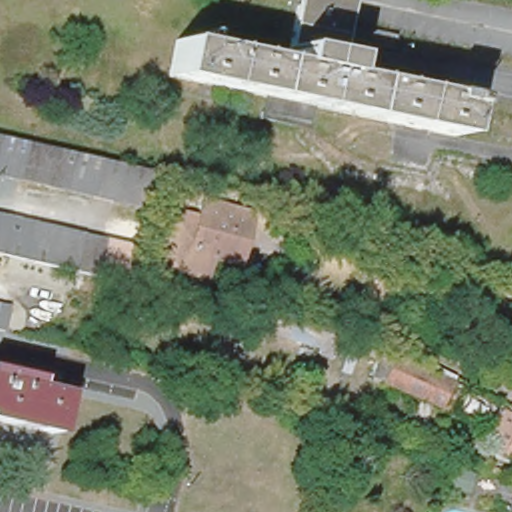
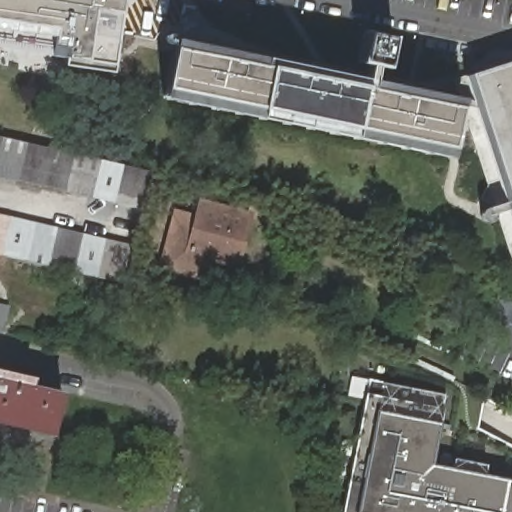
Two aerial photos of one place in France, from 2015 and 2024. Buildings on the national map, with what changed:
new [(55,55),(57,44),(0,35),(0,0),(125,0),(116,63),(55,55)]
unchanged [(337,73),(463,99),(456,136),(312,108),(263,98),(169,79),(176,41),(286,63),(337,73)]
new [(465,76),(512,62),(512,220),(465,76)]
unchanged [(95,190),(71,185),(59,182),(47,179),(22,174),(0,169),(0,133),(5,134),(155,167),(154,172),(146,201),(120,195),(95,190)]
unchanged [(119,200),(94,195),(70,189),(46,184),(21,179),(0,174),(0,169),(22,174),(47,179),(59,182),(71,185),(95,190),(120,195),(146,201),(145,206),(119,200)]
unchanged [(255,207),(241,256),(215,249),(210,268),(185,262),(204,194),(255,207)]
unchanged [(71,273),(46,267),(22,262),(0,257),(0,217),(5,218),(31,223),(54,229),(80,234),(104,240),(129,245),(120,284),(101,280),(95,278),(71,273)]
demolished [(335,337),(332,348),(258,330),(261,320),(335,337)]
demolished [(386,391),(396,365),(452,387),(443,412),(386,391)]
unchanged [(0,373),(34,380),(32,387),(61,394),(51,435),(32,431),(14,427),(0,424),(0,373)]
new [(366,393),(370,378),(445,393),(440,423),(432,465),(512,480),(512,512),(343,512),(366,393)]
demolished [(512,427),(512,444),(505,441),(512,427)]

